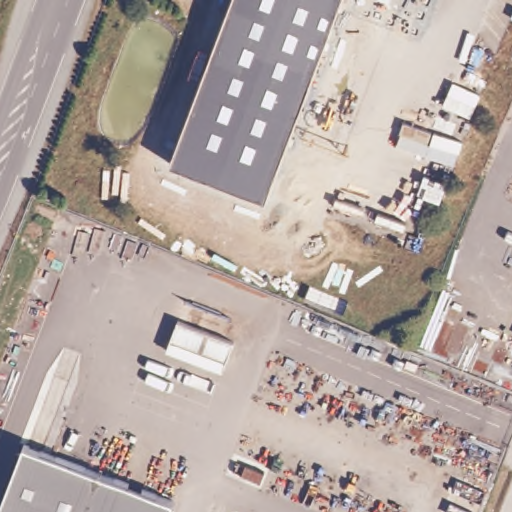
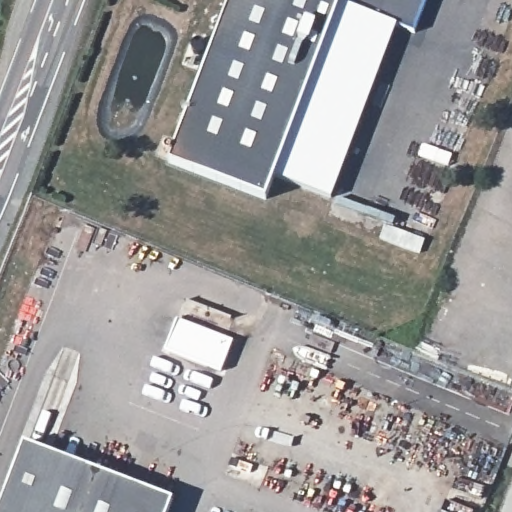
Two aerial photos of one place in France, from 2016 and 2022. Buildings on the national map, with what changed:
unchanged [(171,168),(236,0),(349,0),(268,205),(171,168)]
new [(332,199),(279,178),(347,6),(350,0),(426,0),(414,31),(397,25),(332,199)]
unchanged [(232,345),(224,364),(168,343),(176,323),(232,345)]
unchanged [(28,445),(174,500),(170,512),(3,512),(28,445)]

